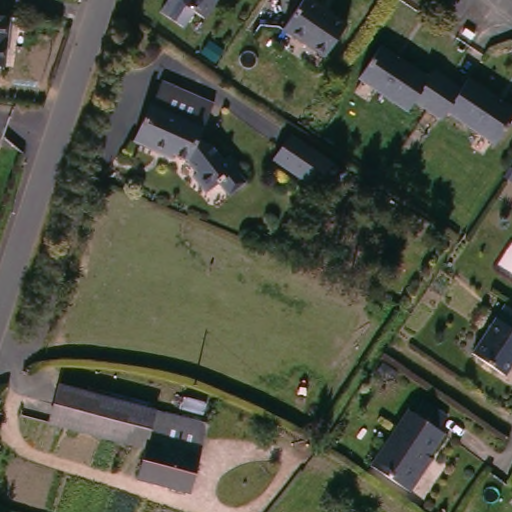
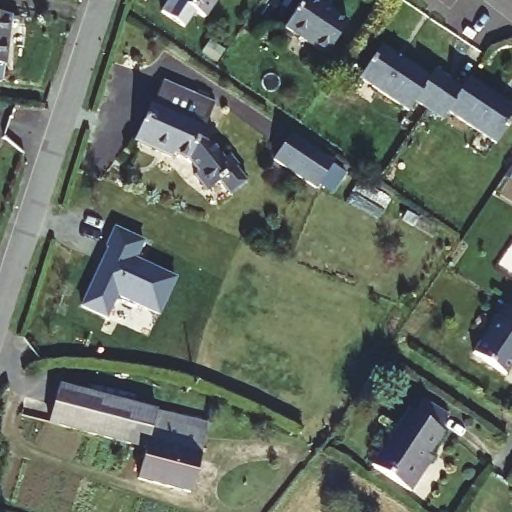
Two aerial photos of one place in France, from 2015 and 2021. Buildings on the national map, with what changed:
unchanged [(187,31),(166,17),(176,0),(177,0),(181,2),(182,0),(222,0),(209,21),(197,15),(187,31)]
unchanged [(307,0),(323,0),(331,5),(327,10),(351,26),(328,56),(286,27),(307,0)]
unchanged [(14,11),(9,62),(0,61),(0,10),(14,11)]
unchanged [(430,103),(421,97),(412,107),(366,76),(389,41),(435,71),(438,65),(450,72),(430,103)]
unchanged [(219,70),(204,60),(212,47),(227,57),(219,70)]
unchanged [(476,77),(512,101),(512,124),(500,141),(459,115),(455,120),(430,103),(450,72),(469,85),(476,77)]
unchanged [(222,171),(202,185),(189,169),(195,163),(184,149),(175,145),(172,150),(134,135),(150,95),(157,97),(165,79),(212,98),(197,132),(222,143),(232,155),(240,149),(247,159),(241,164),(253,177),(236,190),(222,171)]
unchanged [(317,184),(272,155),(290,131),(332,160),(317,184)]
unchanged [(512,173),(512,183),(507,180),(512,173)]
new [(110,246),(107,246),(116,227),(145,240),(136,258),(176,277),(159,313),(118,294),(107,316),(82,305),(110,246)]
unchanged [(512,378),(477,353),(510,305),(512,307),(512,378)]
unchanged [(195,488),(143,475),(150,445),(54,418),(65,380),(212,423),(195,488)]
unchanged [(415,486),(381,463),(417,413),(422,417),(433,403),(457,420),(447,435),(451,437),(415,486)]

